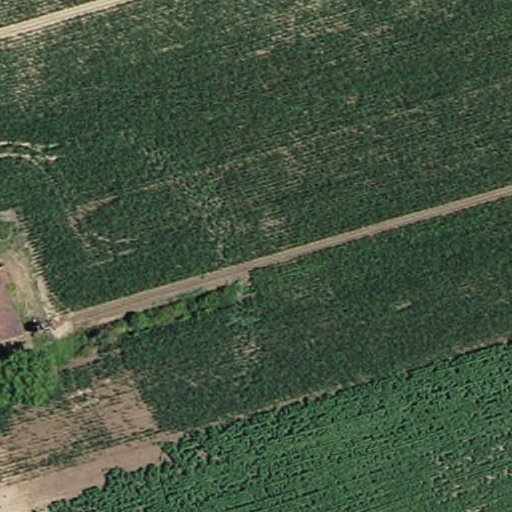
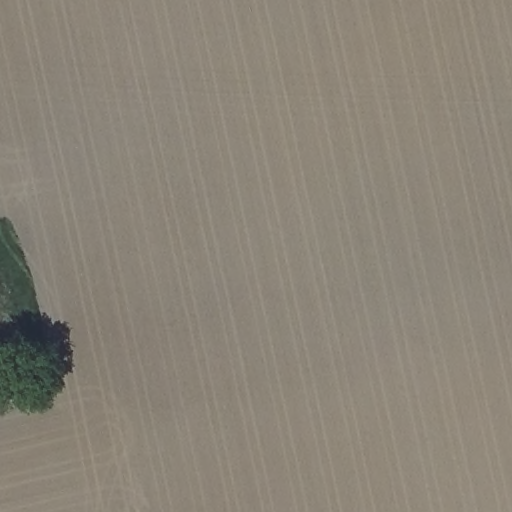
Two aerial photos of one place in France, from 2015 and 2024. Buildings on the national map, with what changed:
unchanged [(0,344),(0,266),(13,262),(33,335),(0,344)]

